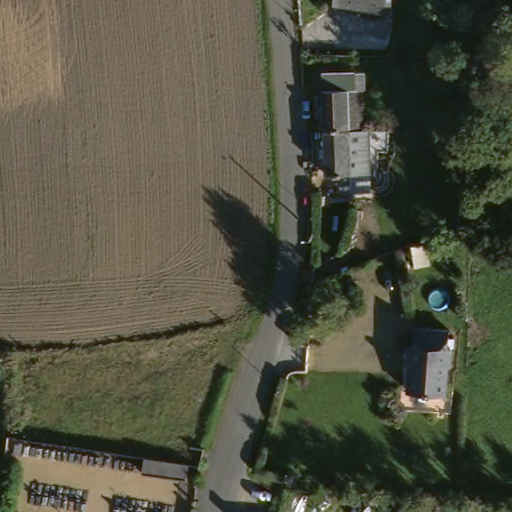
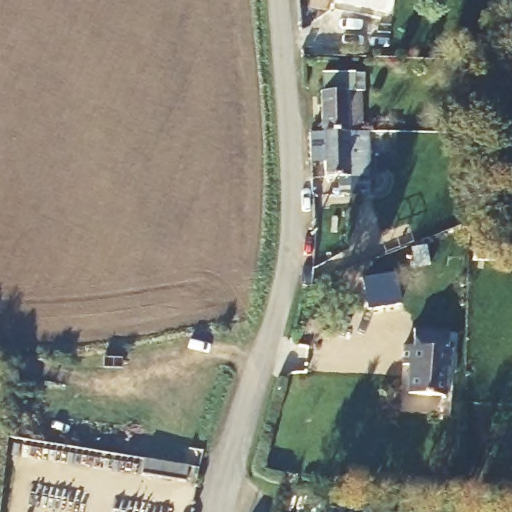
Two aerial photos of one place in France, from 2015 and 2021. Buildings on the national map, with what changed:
unchanged [(335,0),(395,0),(394,11),(334,3),(335,0)]
unchanged [(317,93),(353,93),(358,130),(322,132),(317,93)]
unchanged [(385,180),(355,178),(328,179),(322,132),(358,130),(358,136),(368,136),(385,180)]
new [(361,278),(397,273),(403,304),(366,310),(361,278)]
unchanged [(451,332),(448,349),(451,350),(448,368),(446,367),(441,397),(408,392),(411,365),(404,363),(408,345),(416,346),(418,328),(451,332)]
unchanged [(140,471),(141,457),(186,465),(184,478),(140,471)]

